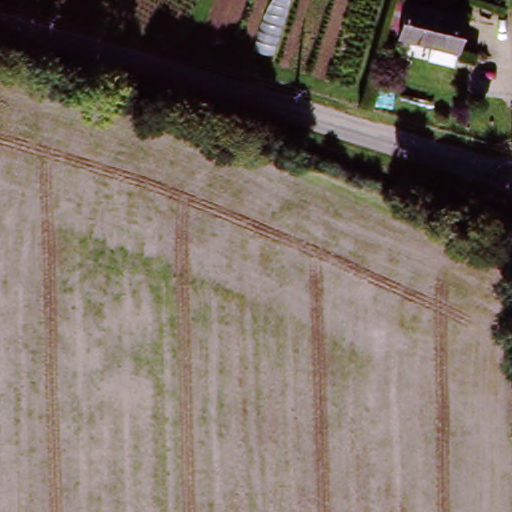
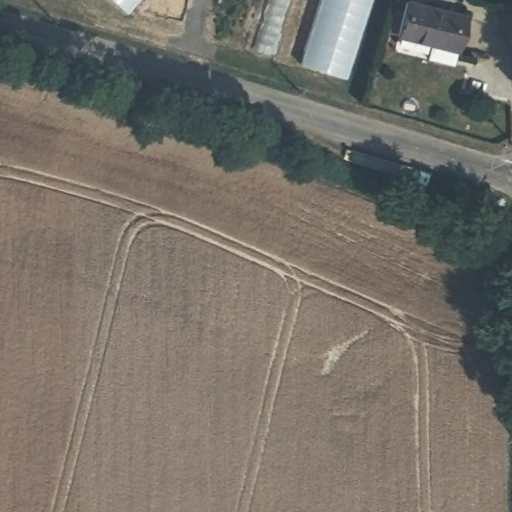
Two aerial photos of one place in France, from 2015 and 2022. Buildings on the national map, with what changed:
unchanged [(249,52),(264,0),(291,0),(270,58),(249,52)]
new [(299,66),(320,0),(370,0),(345,79),(299,66)]
unchanged [(428,62),(432,49),(400,39),(410,4),(469,21),(458,56),(454,69),(428,62)]

